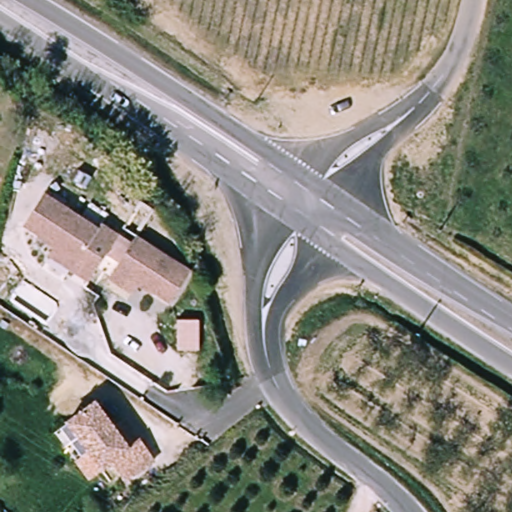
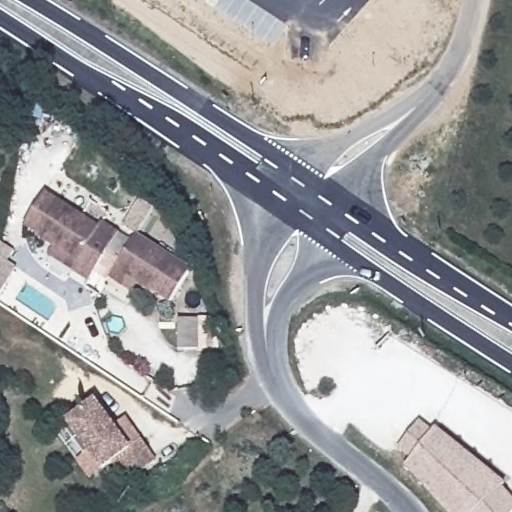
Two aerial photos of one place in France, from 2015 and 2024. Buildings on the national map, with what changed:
unchanged [(73,269),(70,275),(45,260),(50,254),(55,247),(37,236),(38,234),(23,225),(43,194),(98,227),(102,222),(120,233),(100,264),(90,279),(73,269)]
unchanged [(111,275),(115,267),(137,234),(193,268),(173,299),(156,289),(155,291),(139,281),(134,289),(111,275)]
unchanged [(201,318),(201,349),(179,349),(179,317),(201,318)]
unchanged [(115,488),(102,470),(92,477),(57,431),(84,411),(102,434),(115,426),(131,447),(145,466),(115,488)]
new [(434,433),(440,427),(512,495),(512,512),(450,512),(402,467),(410,459),(398,447),(409,435),(422,421),(434,433)]

